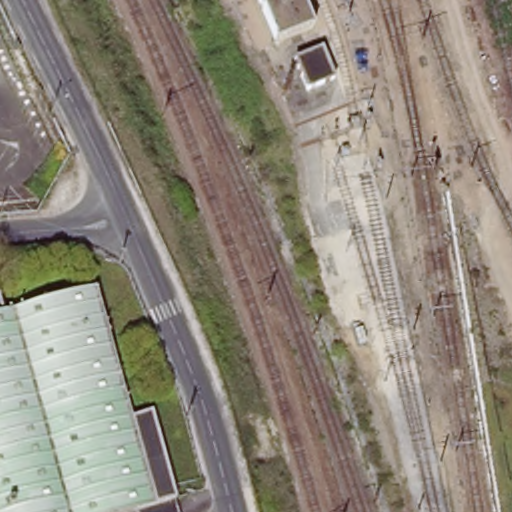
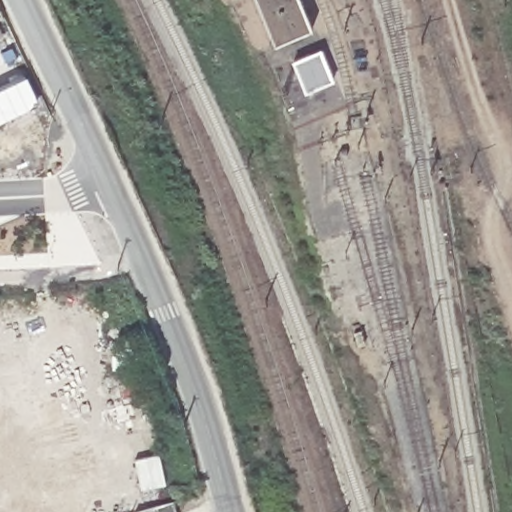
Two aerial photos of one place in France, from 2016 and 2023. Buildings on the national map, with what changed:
unchanged [(273,44),(255,0),(299,0),(310,30),(273,44)]
unchanged [(318,51),(330,80),(305,93),(291,63),(318,51)]
demolished [(93,289),(127,419),(150,413),(177,512),(136,512),(136,511),(130,512),(0,512),(0,309),(1,313),(93,289)]

